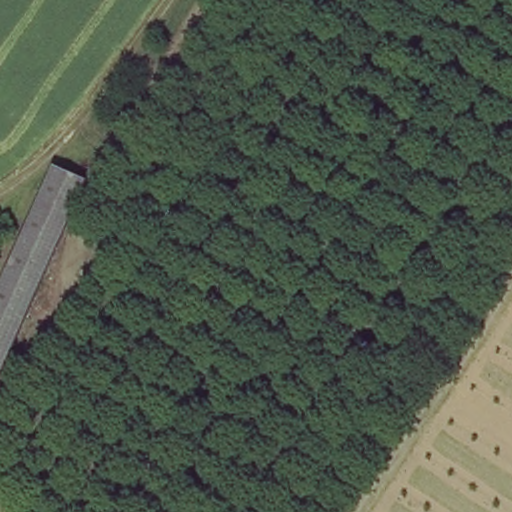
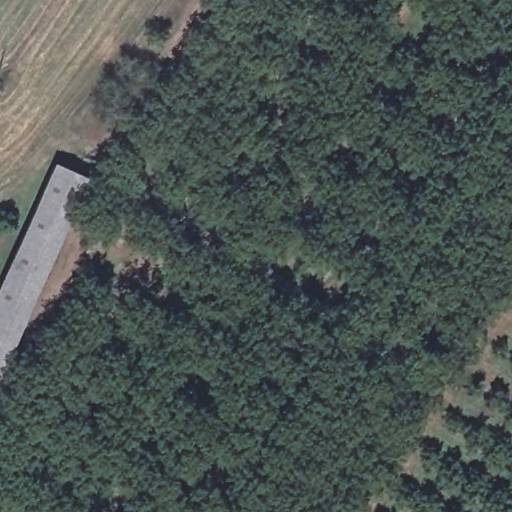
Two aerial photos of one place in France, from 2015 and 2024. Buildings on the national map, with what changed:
unchanged [(90,192),(0,369),(0,294),(60,177),(90,192)]

